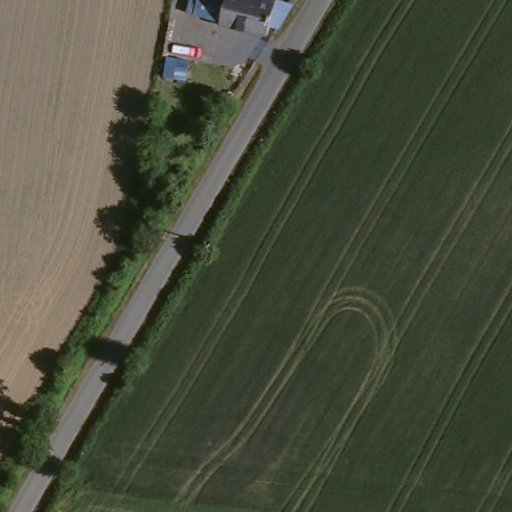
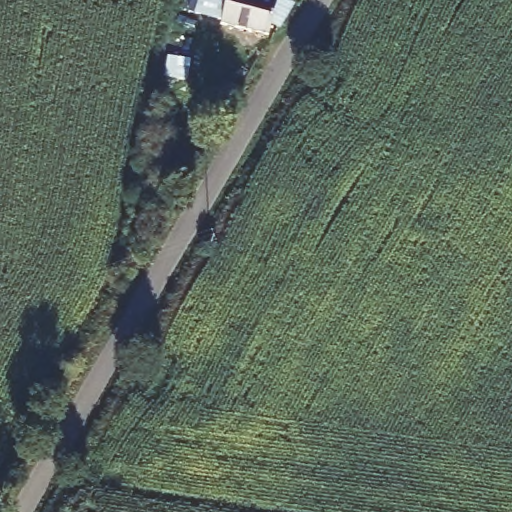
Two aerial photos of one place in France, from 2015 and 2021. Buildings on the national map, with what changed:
unchanged [(198,7),(200,0),(234,0),(230,14),(198,7)]
unchanged [(229,19),(230,14),(234,0),(296,0),(295,2),(279,31),(229,19)]

